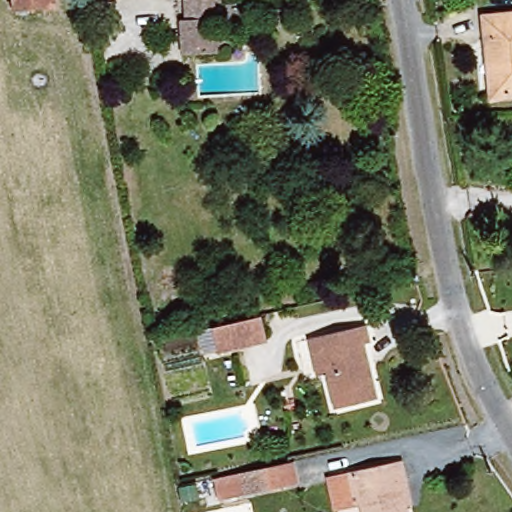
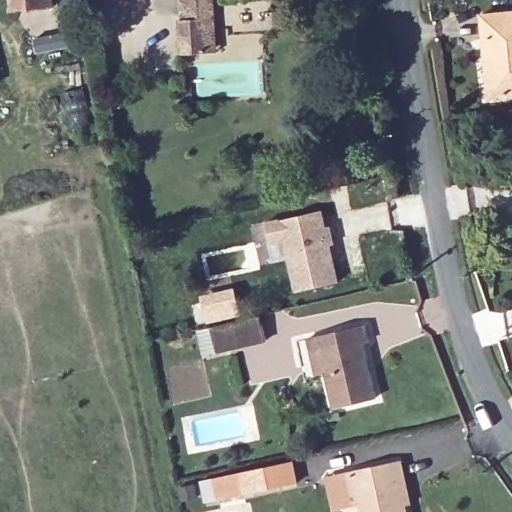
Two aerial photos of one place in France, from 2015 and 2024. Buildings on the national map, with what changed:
unchanged [(55,4),(13,8),(12,0),(55,0),(55,4)]
unchanged [(181,54),(179,19),(185,18),(183,0),(212,0),(214,30),(215,52),(208,52),(181,54)]
unchanged [(499,97),(494,97),(490,52),(487,17),(512,14),(512,95),(499,97)]
new [(320,209),(325,226),(329,225),(333,243),(329,244),(338,281),(297,290),(284,238),(269,242),(265,222),(320,209)]
unchanged [(210,327),(259,315),(265,341),(217,352),(203,355),(198,329),(210,327)]
unchanged [(376,397),(334,407),(326,372),(316,375),(308,338),(317,336),(364,323),(369,341),(363,342),(367,360),(369,371),(376,397)]
unchanged [(411,504),(406,505),(407,512),(362,512),(360,503),(334,510),(327,477),(353,471),(399,459),(403,474),(411,504)]
unchanged [(214,477),(293,461),(298,481),(219,497),(214,477)]

